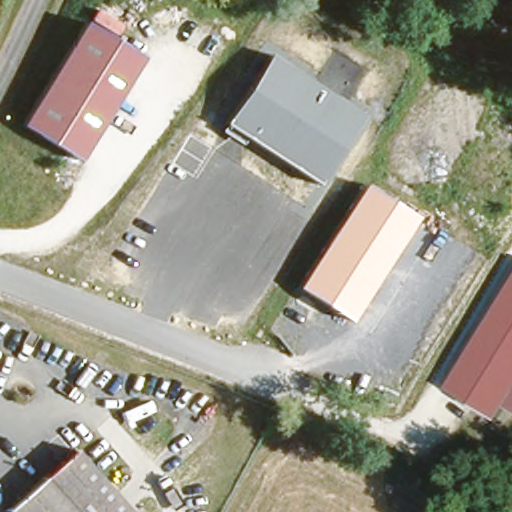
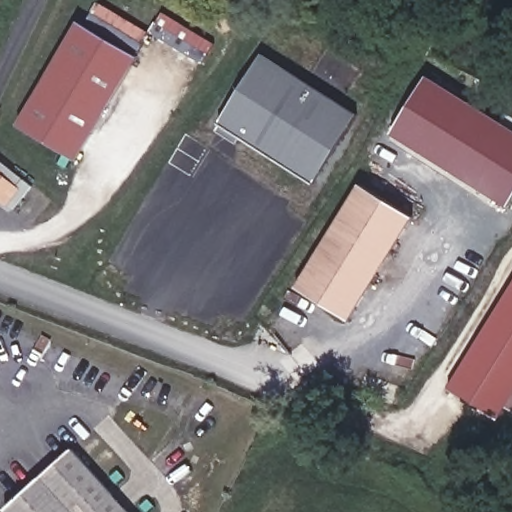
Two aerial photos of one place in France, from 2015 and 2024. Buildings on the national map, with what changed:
unchanged [(80,156),(23,122),(85,18),(142,52),(80,156)]
unchanged [(361,112),(316,184),(245,137),(239,145),(218,129),(221,125),(266,53),(361,112)]
new [(426,77),(512,134),(512,197),(504,209),(389,134),(426,77)]
new [(11,210),(1,202),(15,186),(0,175),(0,161),(31,186),(11,210)]
unchanged [(351,321),(295,287),(360,182),(416,217),(351,321)]
unchanged [(505,406),(497,419),(450,389),(512,287),(512,411),(505,406)]
unchanged [(13,512),(9,508),(75,446),(136,512),(13,512)]

